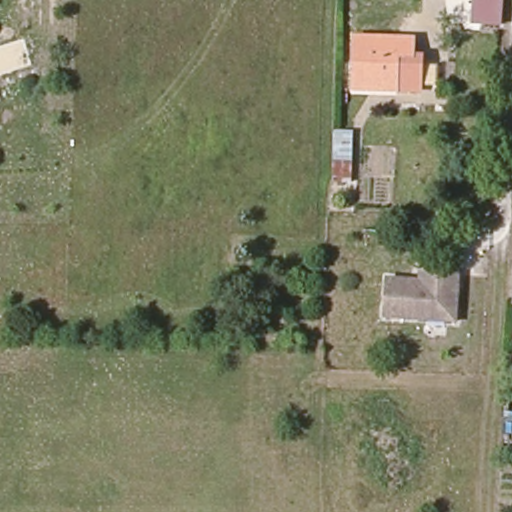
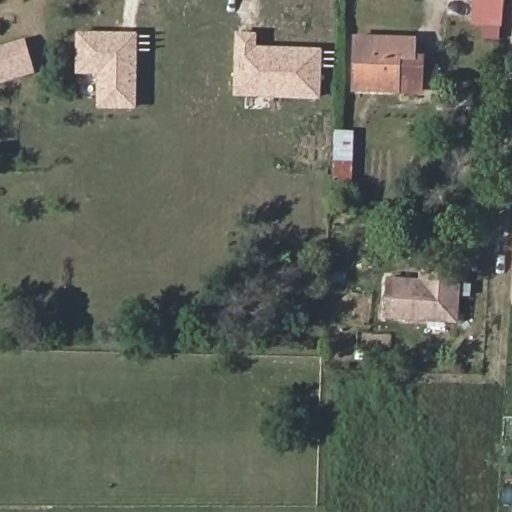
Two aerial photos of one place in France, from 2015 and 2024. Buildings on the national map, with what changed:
new [(504,21),(475,19),(476,0),(506,0),(504,21)]
new [(256,34),(256,47),(322,50),(320,96),(238,92),(239,33),(256,34)]
unchanged [(400,87),(353,86),(355,34),(411,36),(410,52),(407,87),(400,87)]
new [(139,35),(138,108),(102,107),(102,74),(81,73),(82,35),(139,35)]
new [(0,43),(23,36),(32,63),(34,70),(0,80),(0,43)]
unchanged [(343,152),(343,131),(365,132),(364,153),(343,152)]
unchanged [(390,279),(427,280),(427,271),(461,272),(459,319),(388,316),(390,279)]

